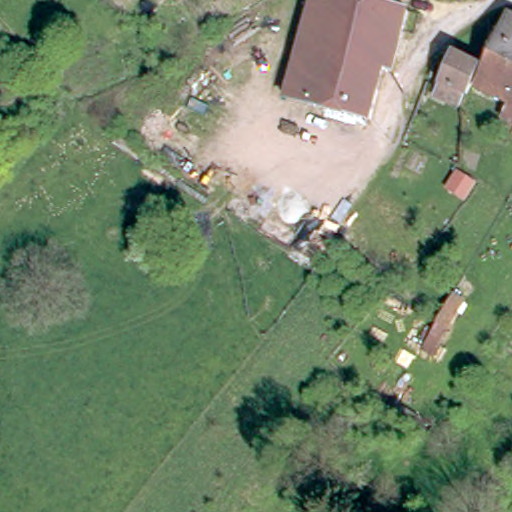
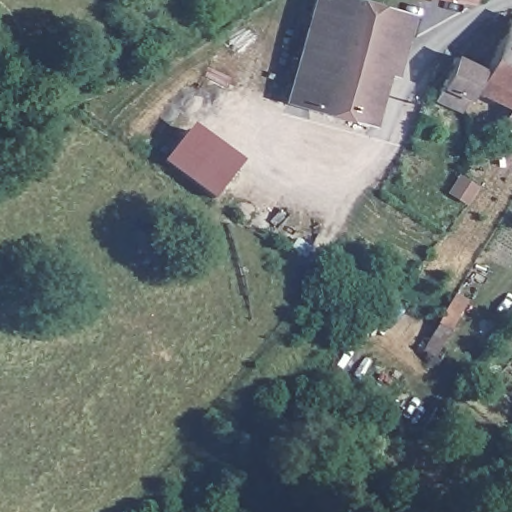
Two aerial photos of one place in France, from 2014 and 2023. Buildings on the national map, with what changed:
unchanged [(311,0),(355,0),(404,12),(388,71),(380,70),(297,50),(311,0)]
unchanged [(461,0),(466,0),(466,1),(461,0)]
unchanged [(478,94),(510,20),(512,20),(512,109),(478,94)]
unchanged [(380,70),(367,121),(284,101),(297,50),(380,70)]
unchanged [(437,101),(454,61),(482,72),(475,88),(469,101),(467,101),(464,109),(462,113),(437,101)]
new [(185,127),(234,162),(210,194),(162,158),(185,127)]

